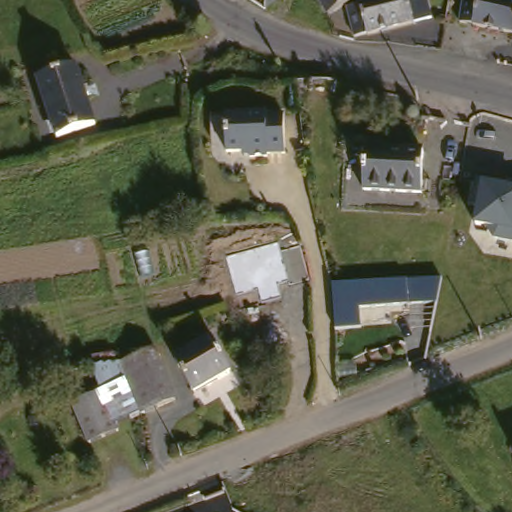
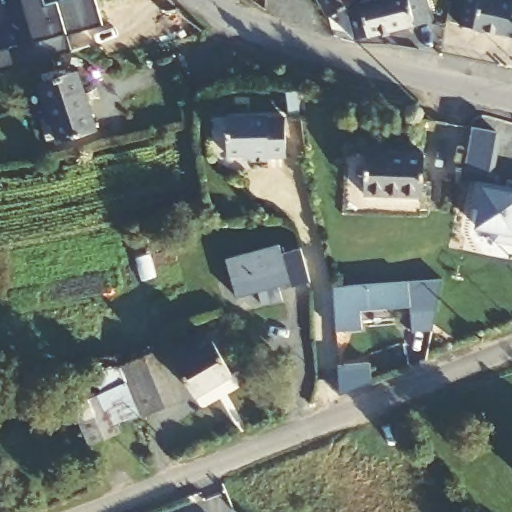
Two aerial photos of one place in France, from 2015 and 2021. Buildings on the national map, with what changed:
new [(66,35),(70,50),(0,69),(0,49),(19,44),(6,0),(42,0),(44,5),(56,1),(62,0),(95,0),(103,24),(66,35)]
unchanged [(331,18),(319,0),(360,0),(361,3),(331,18)]
unchanged [(430,18),(367,34),(359,6),(371,3),(370,0),(438,0),(441,15),(430,18)]
unchanged [(468,22),(467,22),(470,0),(512,0),(512,32),(468,22)]
unchanged [(98,122),(61,135),(41,75),(79,62),(98,122)]
unchanged [(294,116),(291,156),(227,152),(229,110),(294,116)]
unchanged [(472,123),(497,127),(491,157),(501,159),(498,174),(464,167),(472,123)]
unchanged [(422,146),(425,189),(370,193),(366,149),(422,146)]
unchanged [(491,241),(493,229),(475,227),(482,184),(512,189),(512,245),(491,241)]
unchanged [(280,240),(282,249),(301,245),(308,279),(287,283),(286,279),(277,281),(279,295),(259,298),(256,285),(234,289),(226,250),(280,240)]
unchanged [(436,305),(358,310),(360,330),(336,332),(333,287),(440,280),(436,305)]
unchanged [(178,356),(211,335),(240,370),(207,395),(178,356)]
unchanged [(77,400),(104,387),(95,365),(129,359),(157,348),(180,400),(140,413),(158,460),(129,467),(116,430),(98,441),(77,400)]

